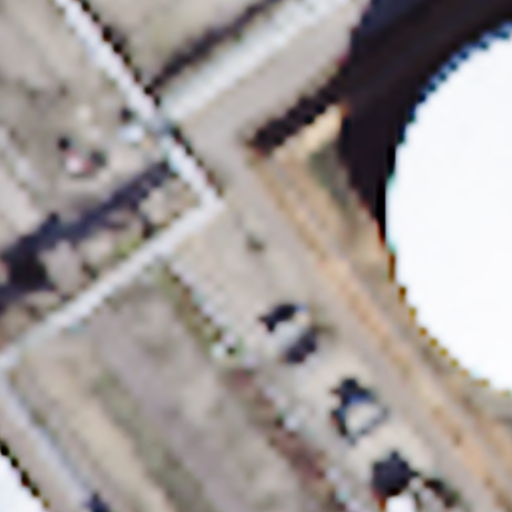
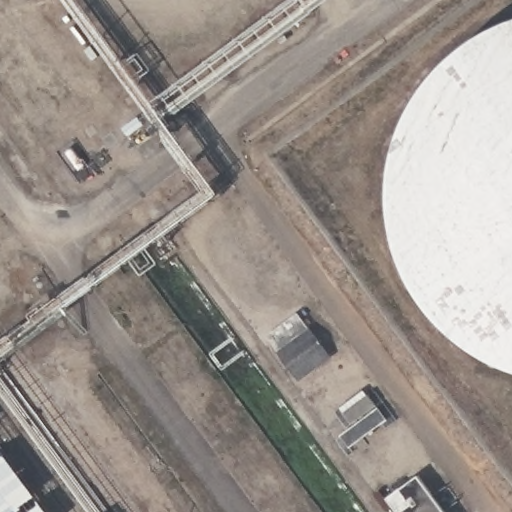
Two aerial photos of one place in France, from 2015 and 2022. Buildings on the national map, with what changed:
unchanged [(336,357),(304,381),(282,351),(283,350),(271,335),(302,313),(313,328),(314,327),(336,357)]
unchanged [(0,453),(43,512),(0,512),(0,453)]
unchanged [(415,475),(443,512),(392,512),(382,499),(415,475)]

